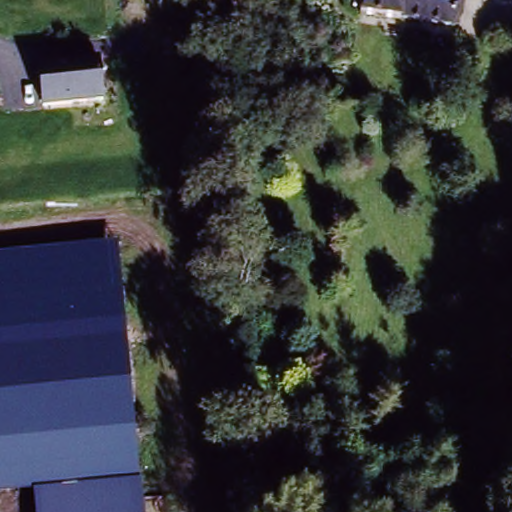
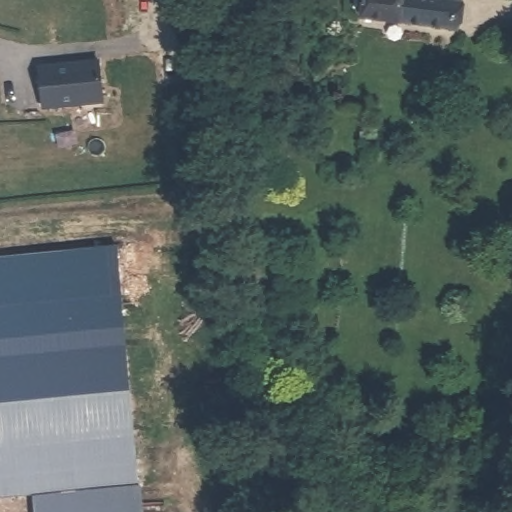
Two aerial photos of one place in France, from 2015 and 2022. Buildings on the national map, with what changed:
unchanged [(333,14),(335,0),(464,0),(459,33),(333,14)]
unchanged [(100,64),(104,106),(41,110),(35,69),(100,64)]
unchanged [(138,480),(50,482),(50,512),(33,512),(31,496),(0,500),(0,248),(111,237),(138,480)]
unchanged [(151,480),(151,512),(50,512),(50,482),(151,480)]

